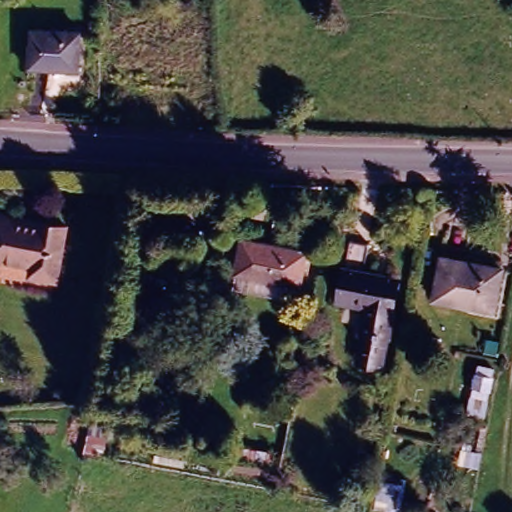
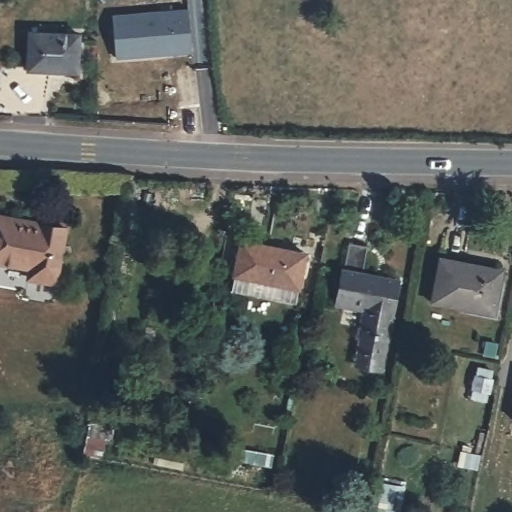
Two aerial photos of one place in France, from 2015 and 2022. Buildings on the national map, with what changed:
new [(188,4),(191,51),(116,57),(113,11),(188,4)]
unchanged [(81,33),(79,65),(25,62),(27,29),(81,33)]
unchanged [(62,278),(35,274),(36,262),(0,256),(0,206),(70,218),(62,278)]
unchanged [(305,247),(300,282),(235,269),(240,233),(305,247)]
unchanged [(501,264),(493,305),(433,293),(438,251),(501,264)]
unchanged [(373,278),(371,284),(398,288),(384,370),(357,365),(367,305),(340,299),(343,272),(373,278)]

